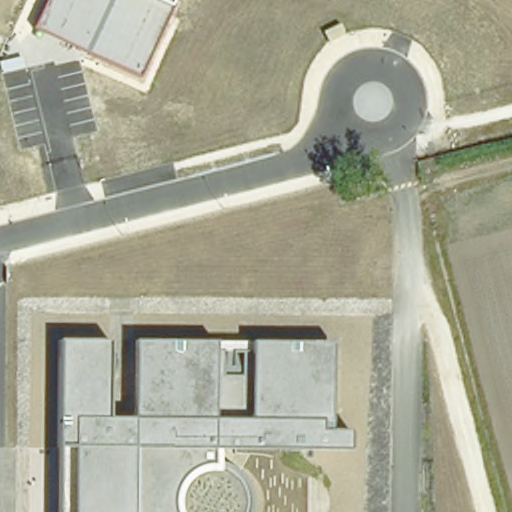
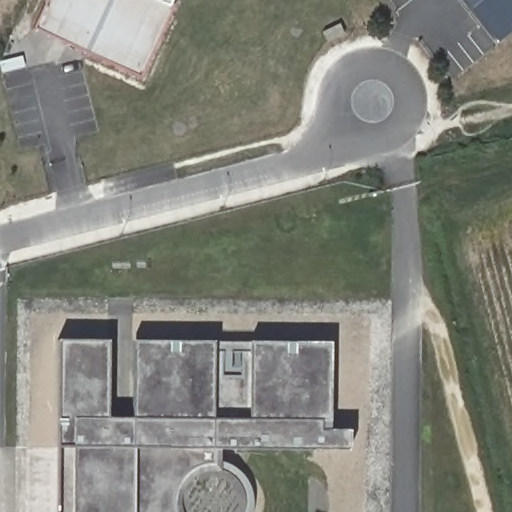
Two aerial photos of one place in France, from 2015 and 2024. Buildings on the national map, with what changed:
unchanged [(35,29),(49,0),(148,0),(170,10),(140,76),(35,29)]
unchanged [(170,10),(148,0),(175,0),(170,10)]
new [(497,43),(464,0),(512,0),(512,31),(497,43)]
unchanged [(109,419),(134,420),(133,343),(213,343),(330,343),(330,430),(349,430),(349,451),(214,450),(217,467),(228,470),(242,481),(249,494),(250,505),(249,512),(56,512),(58,342),(109,341),(109,419)]

